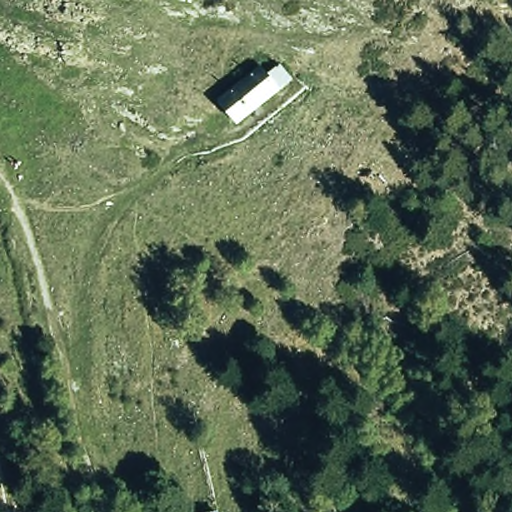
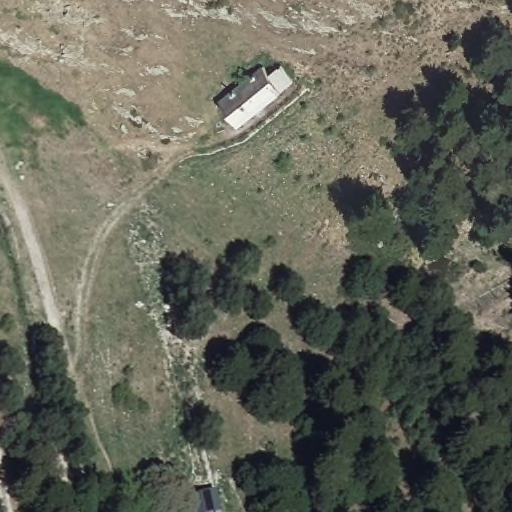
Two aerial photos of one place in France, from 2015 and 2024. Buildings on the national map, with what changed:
unchanged [(222,99),(268,63),(276,74),(286,63),(301,78),(244,126),(222,99)]

